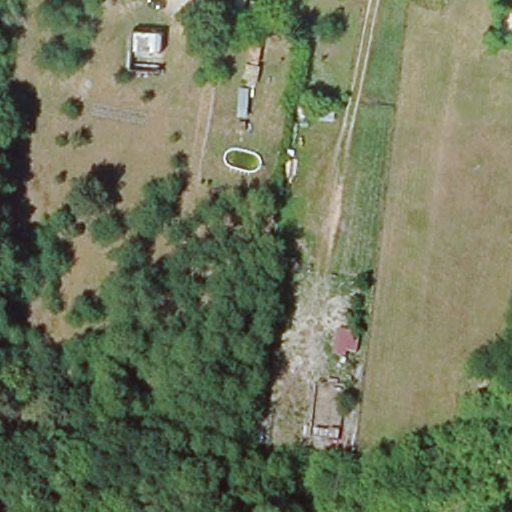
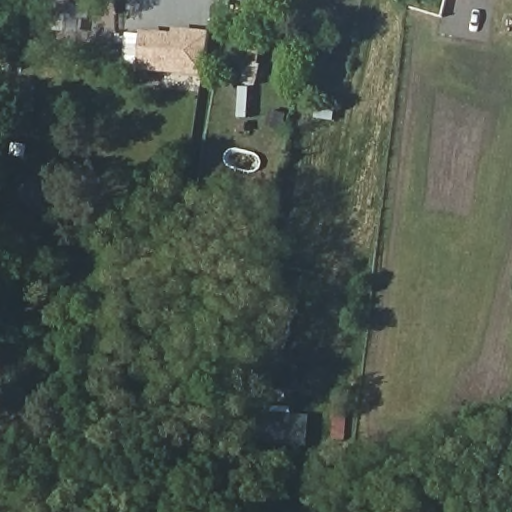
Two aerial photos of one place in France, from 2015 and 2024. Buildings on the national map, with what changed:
new [(211,31),(204,74),(141,69),(143,32),(174,34),(175,28),(211,31)]

